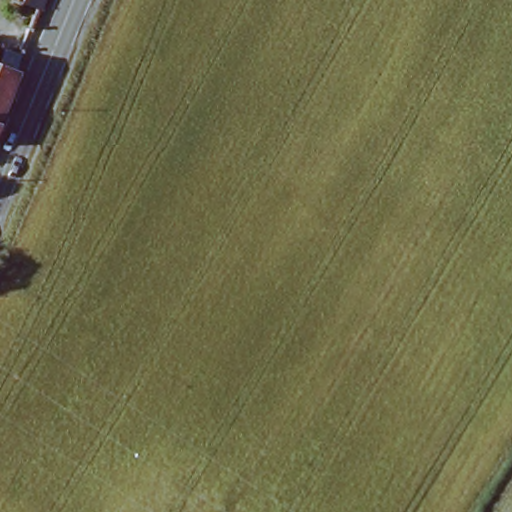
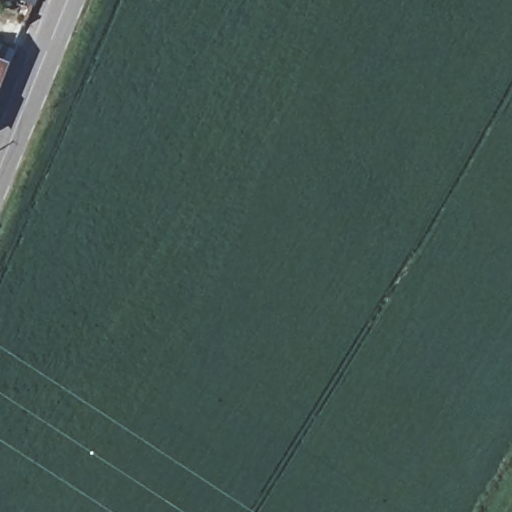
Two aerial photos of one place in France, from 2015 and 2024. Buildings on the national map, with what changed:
unchanged [(14,54),(0,88),(0,49),(14,54)]

